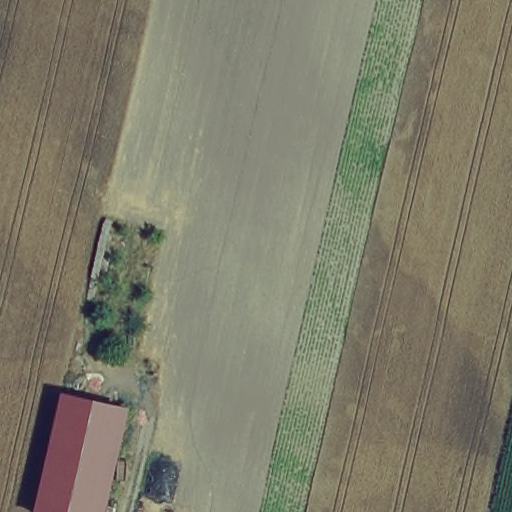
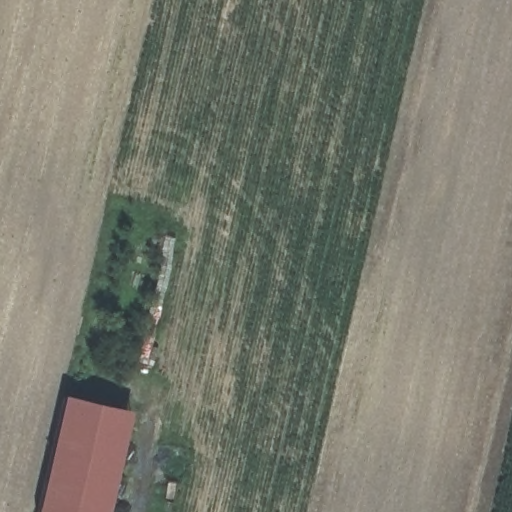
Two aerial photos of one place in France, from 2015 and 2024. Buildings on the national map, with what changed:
unchanged [(110,512),(39,512),(48,475),(65,401),(132,416),(110,512)]

